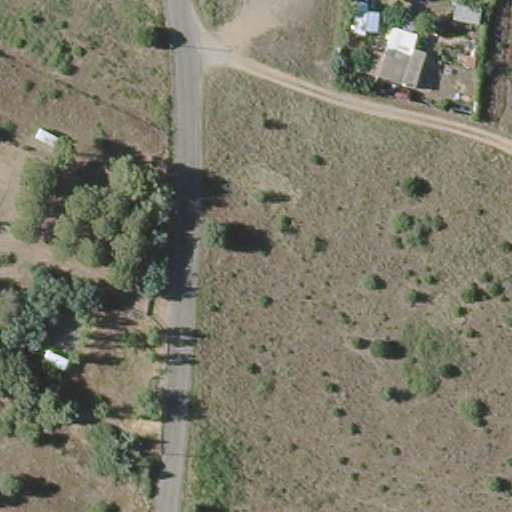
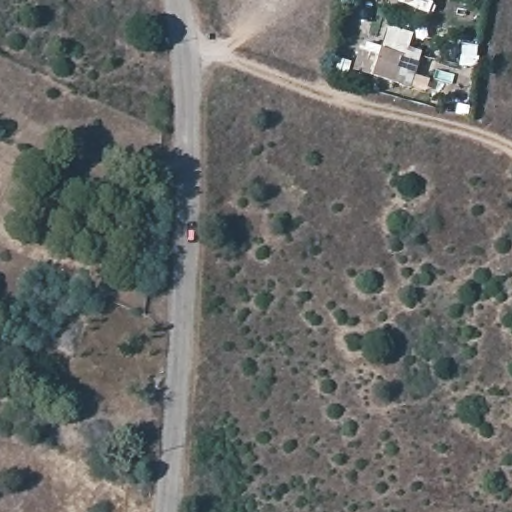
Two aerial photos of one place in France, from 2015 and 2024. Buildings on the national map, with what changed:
unchanged [(481,39),(464,37),(465,22),(482,23),(481,39)]
unchanged [(429,94),(379,79),(386,56),(398,60),(400,54),(424,61),(427,55),(440,58),(429,94)]
unchanged [(19,353),(12,350),(19,336),(26,339),(19,353)]

